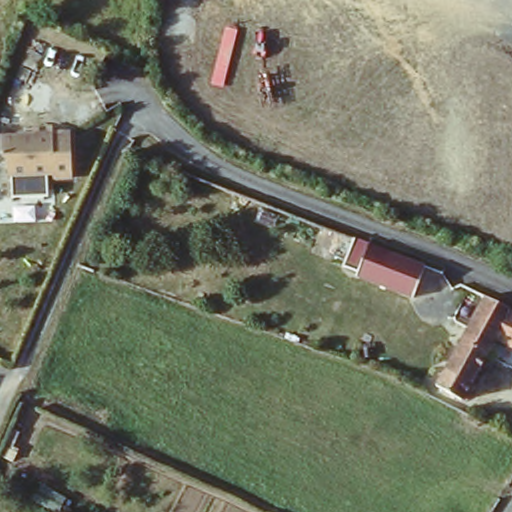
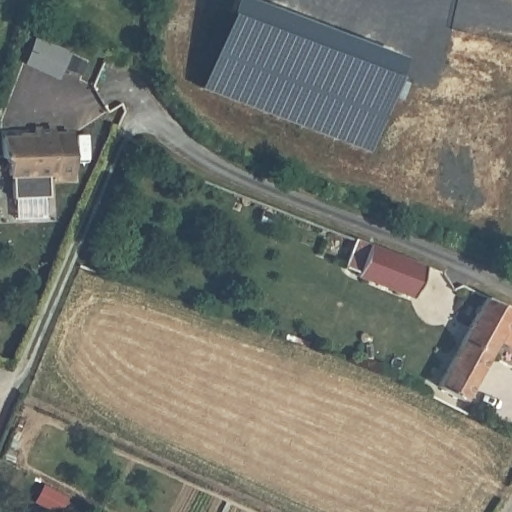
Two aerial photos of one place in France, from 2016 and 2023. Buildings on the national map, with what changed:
new [(221,18),(400,83),(375,157),(196,91),(221,18)]
unchanged [(2,139),(34,136),(34,128),(53,127),(54,134),(68,134),(71,181),(47,182),(46,197),(12,198),(13,180),(2,178),(2,139)]
unchanged [(357,276),(358,272),(342,265),(354,238),(370,244),(426,266),(413,298),(357,276)]
unchanged [(512,307),(512,349),(501,343),(467,400),(440,388),(462,349),(493,299),(512,307)]
unchanged [(59,512),(39,512),(28,507),(40,483),(66,497),(59,512)]

